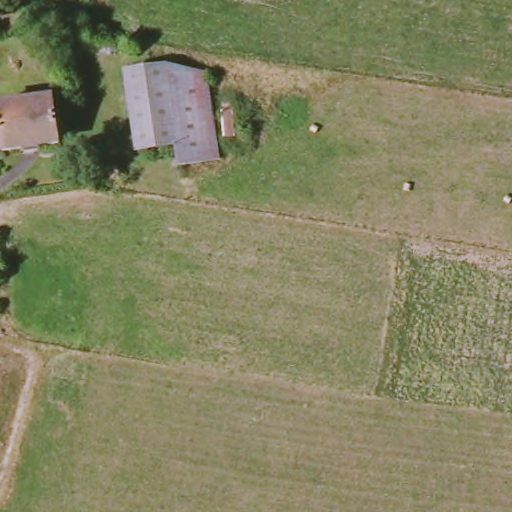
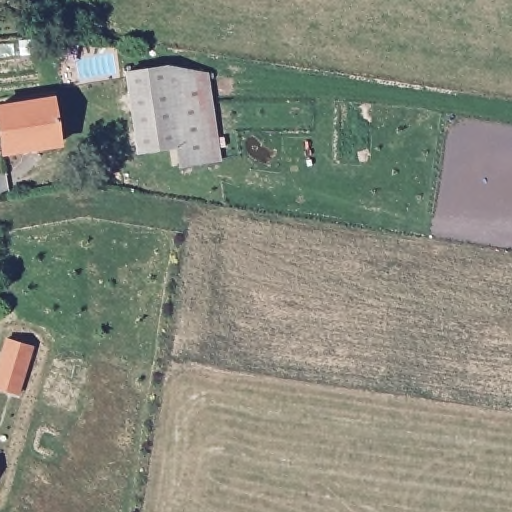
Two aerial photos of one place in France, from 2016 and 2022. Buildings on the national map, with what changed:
unchanged [(184,166),(181,146),(142,151),(131,71),(170,66),(211,74),(224,160),(184,166)]
unchanged [(0,139),(0,105),(52,98),(59,143),(2,151),(0,139)]
unchanged [(91,170),(117,166),(120,179),(93,184),(91,170)]
new [(33,345),(19,395),(0,389),(0,350),(3,338),(33,345)]

